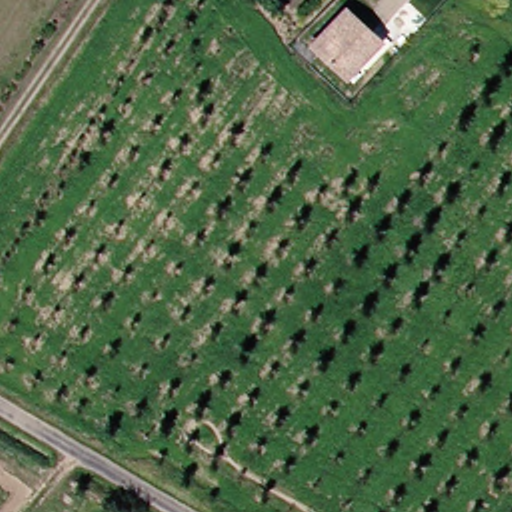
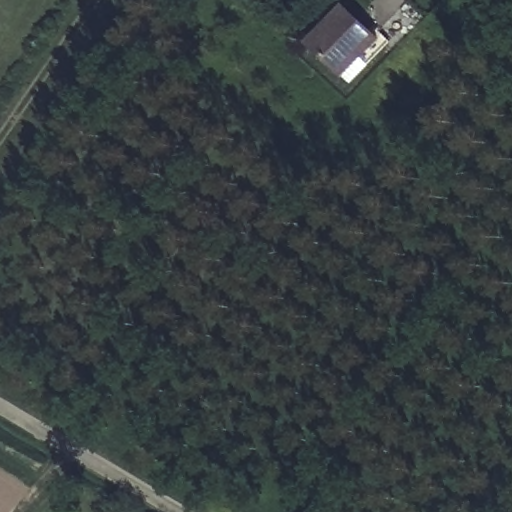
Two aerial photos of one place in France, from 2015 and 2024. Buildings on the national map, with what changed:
unchanged [(373,34),(336,69),(315,46),(352,12),(373,34)]

